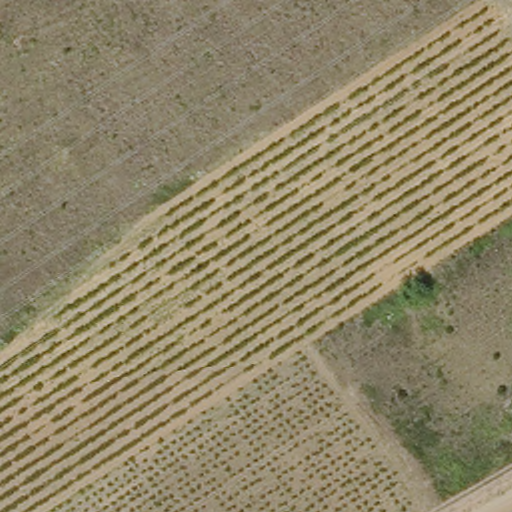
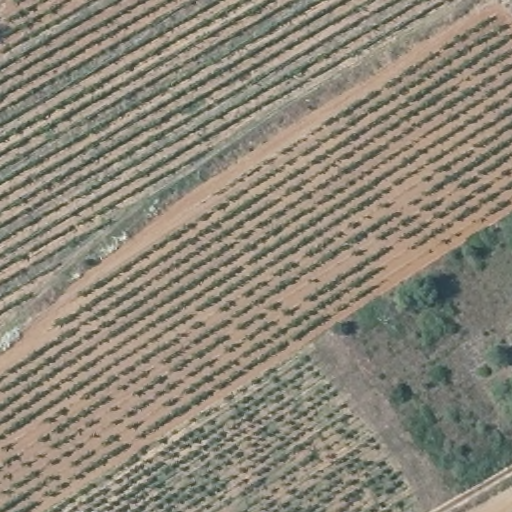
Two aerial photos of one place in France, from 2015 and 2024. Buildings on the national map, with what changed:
[]

